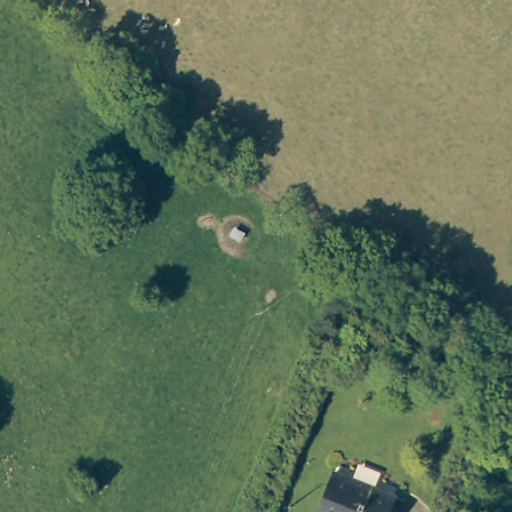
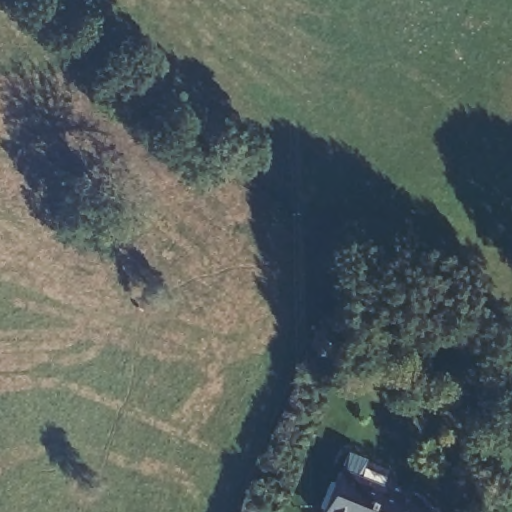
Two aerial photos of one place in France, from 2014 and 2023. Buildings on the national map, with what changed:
unchanged [(395,492),(387,512),(317,512),(332,468),(395,492)]

